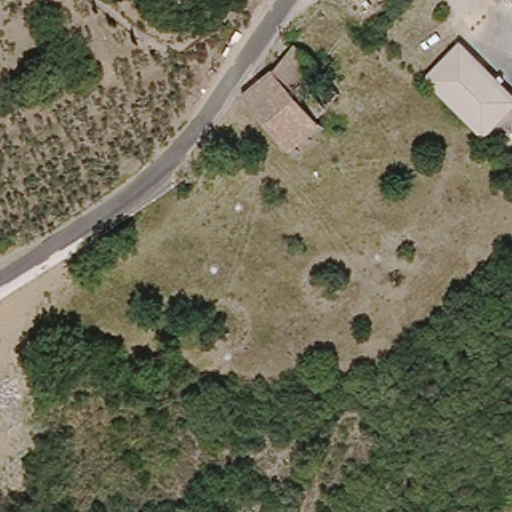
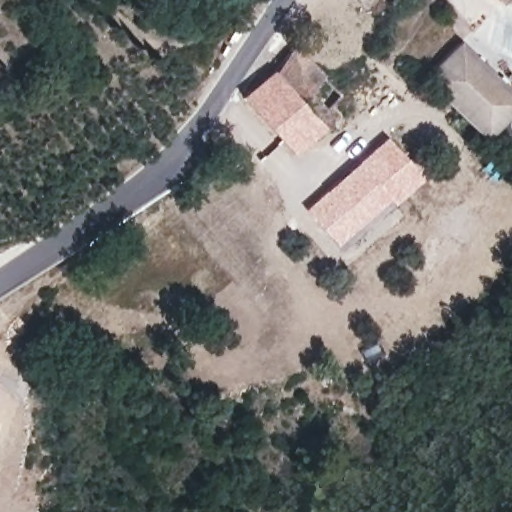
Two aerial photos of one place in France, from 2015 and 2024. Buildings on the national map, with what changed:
unchanged [(297,37),(324,63),(299,96),(274,71),(297,37)]
unchanged [(464,37),(512,85),(512,106),(485,132),(427,74),(464,37)]
unchanged [(315,111),(318,115),(290,144),(242,95),(270,66),(274,71),(299,96),(315,111)]
new [(385,135),(421,175),(391,200),(387,196),(333,242),(305,207),(385,135)]

